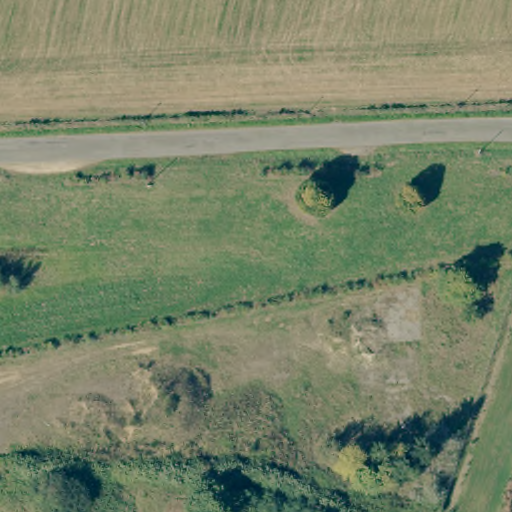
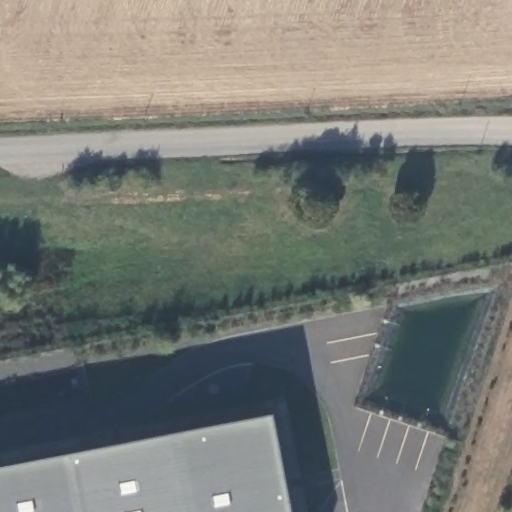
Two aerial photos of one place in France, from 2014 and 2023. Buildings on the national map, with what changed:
new [(275,412),(295,512),(0,512),(0,464),(275,412)]
demolished [(512,501),(512,506),(511,506),(512,501)]

